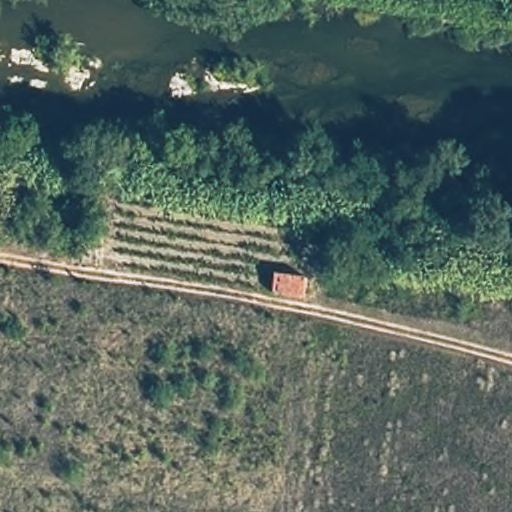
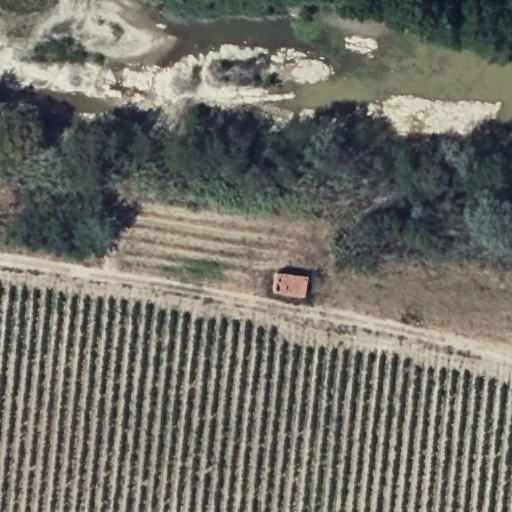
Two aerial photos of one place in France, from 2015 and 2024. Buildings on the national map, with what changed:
unchanged [(309,274),(305,293),(273,288),(275,269),(309,274)]

